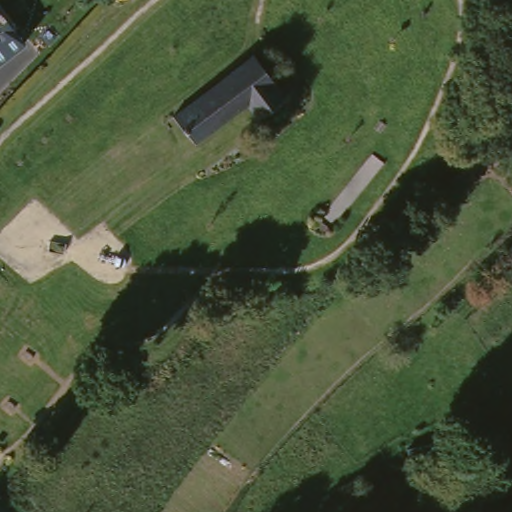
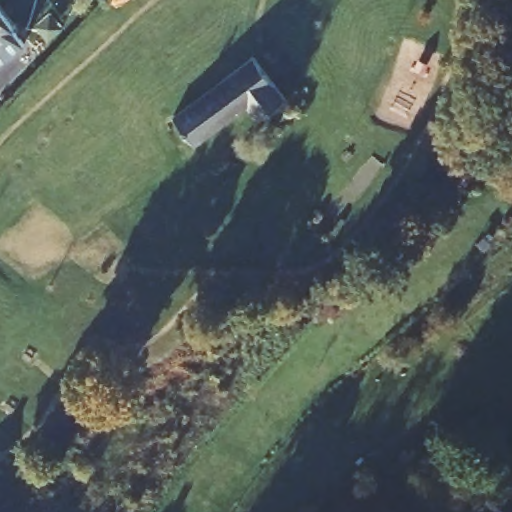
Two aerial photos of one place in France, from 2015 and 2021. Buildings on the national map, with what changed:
unchanged [(0,39),(0,6),(16,24),(0,39)]
unchanged [(294,101),(266,120),(255,108),(205,146),(182,115),(260,58),(294,101)]

